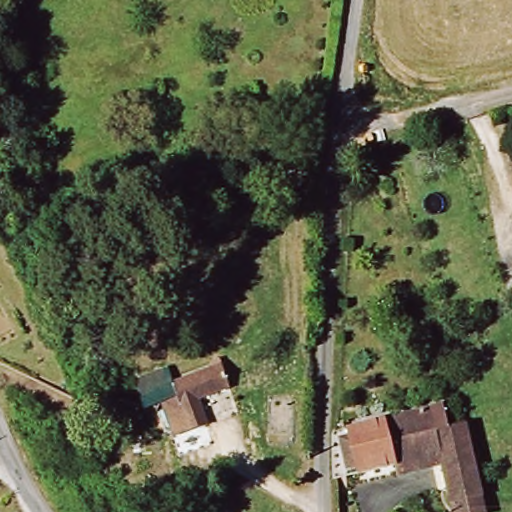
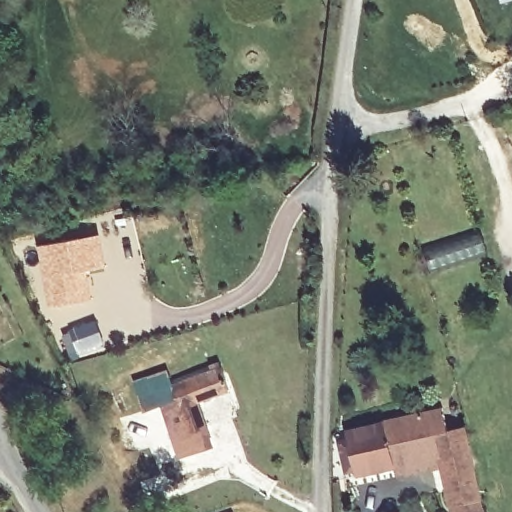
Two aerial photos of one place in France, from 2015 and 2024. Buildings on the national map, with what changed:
new [(94,234),(100,265),(80,268),(86,298),(46,305),(35,244),(74,237),(94,234)]
new [(91,320),(99,340),(74,350),(66,330),(91,320)]
unchanged [(183,397),(178,381),(226,365),(233,386),(203,395),(211,424),(174,435),(165,403),(183,397)]
unchanged [(431,457),(431,467),(404,472),(403,467),(346,477),(348,427),(439,408),(444,429),(474,423),(487,478),(484,500),(460,504),(450,452),(431,457)]

